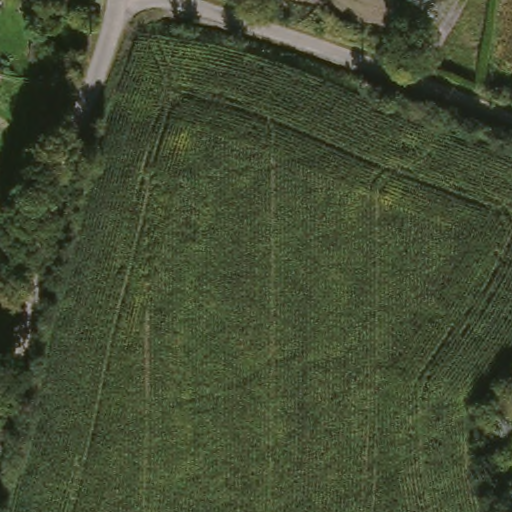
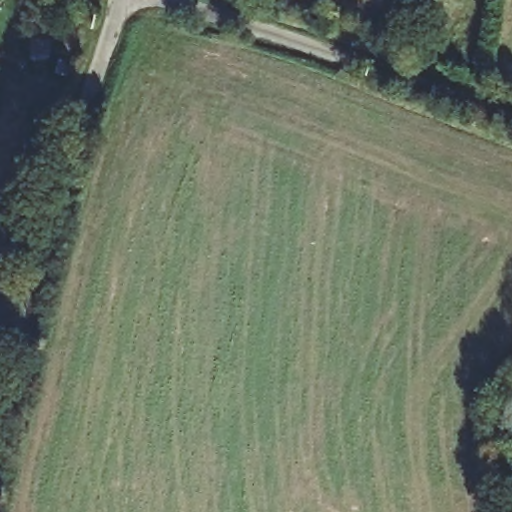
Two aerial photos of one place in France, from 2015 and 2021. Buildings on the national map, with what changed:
unchanged [(512,487),(512,512),(510,512),(508,488),(512,487)]

